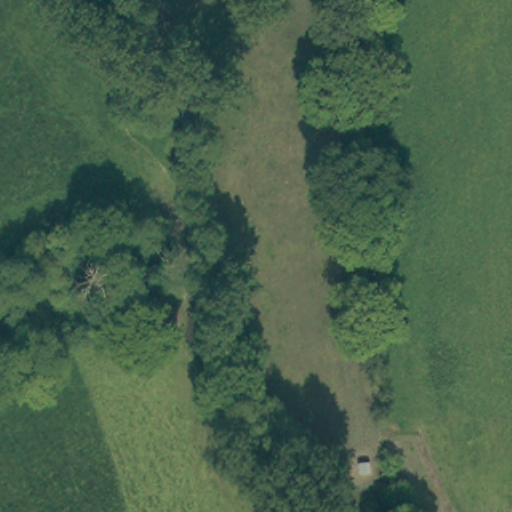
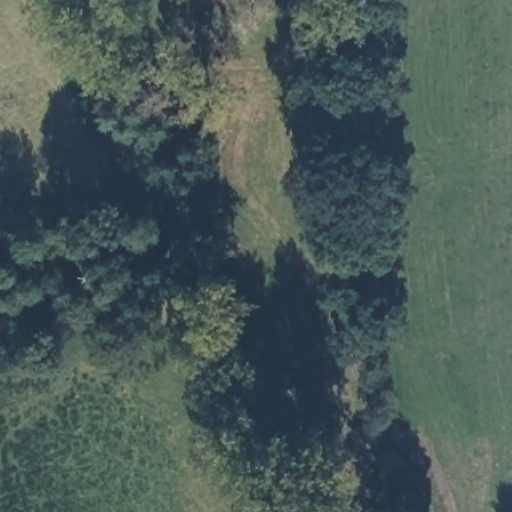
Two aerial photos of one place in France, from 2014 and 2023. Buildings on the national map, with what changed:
[]

